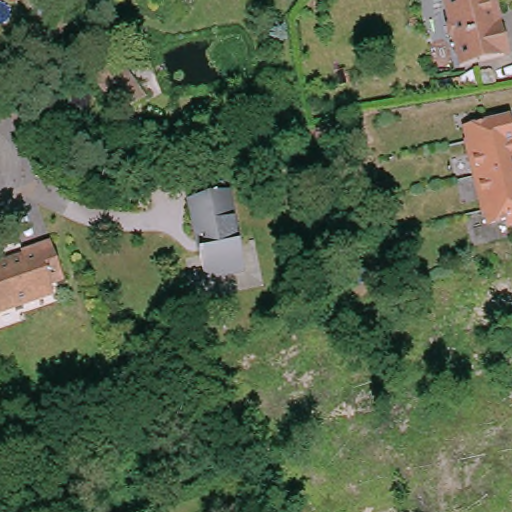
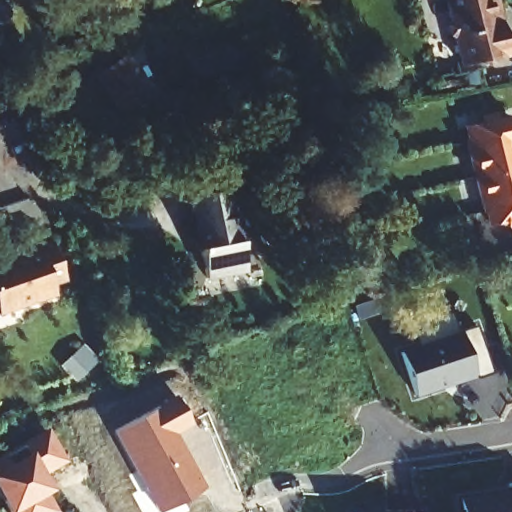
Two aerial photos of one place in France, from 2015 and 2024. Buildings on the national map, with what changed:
unchanged [(461,67),(454,38),(449,36),(447,27),(450,23),(445,0),(496,0),(499,12),(494,14),(497,24),(502,23),(510,55),(461,67)]
unchanged [(118,55),(142,90),(117,106),(95,72),(118,55)]
unchanged [(484,215),(483,212),(465,141),(469,140),(465,129),(483,125),(481,117),(495,113),(497,121),(509,118),(512,131),(512,228),(508,229),(506,221),(489,225),(486,214),(484,215)]
unchanged [(227,189),(242,268),(202,275),(197,246),(204,245),(196,210),(190,211),(187,196),(227,189)]
unchanged [(5,269),(26,263),(21,254),(52,244),(64,283),(52,287),(56,297),(0,316),(0,267),(5,266),(5,269)]
new [(475,331),(489,375),(473,380),(471,375),(414,396),(401,354),(475,331)]
new [(177,437),(205,488),(164,512),(156,512),(110,433),(173,396),(193,427),(177,437)]
new [(44,475),(51,489),(44,494),(56,512),(6,512),(0,501),(0,455),(47,428),(65,462),(44,475)]
new [(452,512),(449,493),(482,488),(482,492),(507,489),(507,481),(512,480),(512,512),(452,512)]

